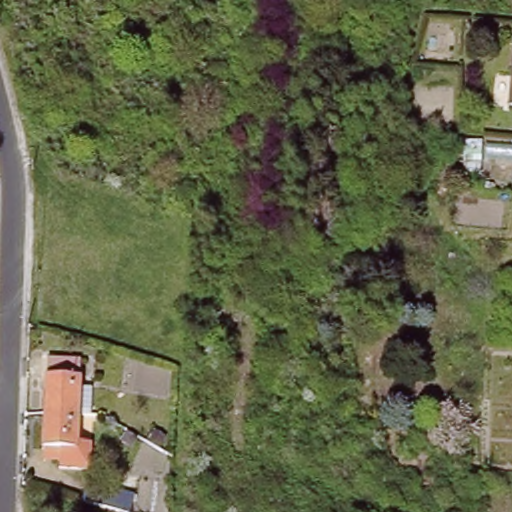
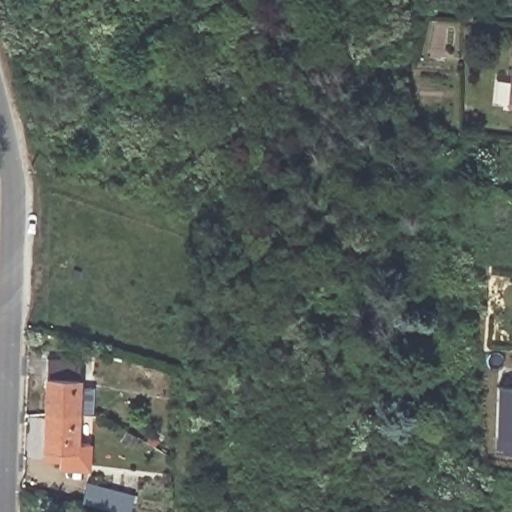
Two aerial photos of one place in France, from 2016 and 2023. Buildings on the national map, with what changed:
unchanged [(510,74),(512,53),(512,107),(507,107),(510,74)]
unchanged [(48,358),(80,361),(78,415),(45,413),(48,358)]
new [(495,388),(512,389),(512,451),(493,451),(495,388)]
unchanged [(43,450),(45,413),(78,415),(77,443),(92,443),(91,468),(92,471),(57,469),(57,464),(43,463),(43,450)]
unchanged [(90,482),(133,495),(128,512),(122,512),(108,508),(85,502),(90,482)]

